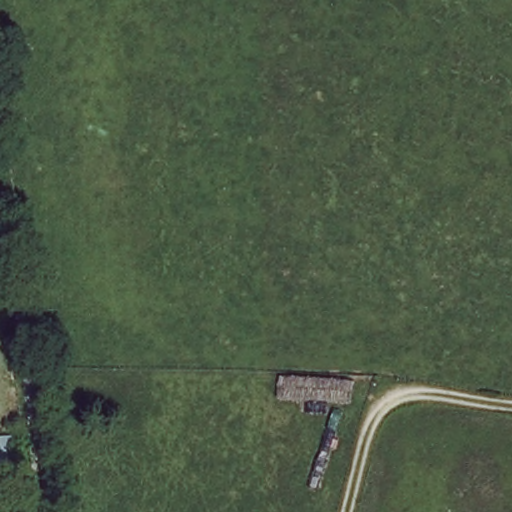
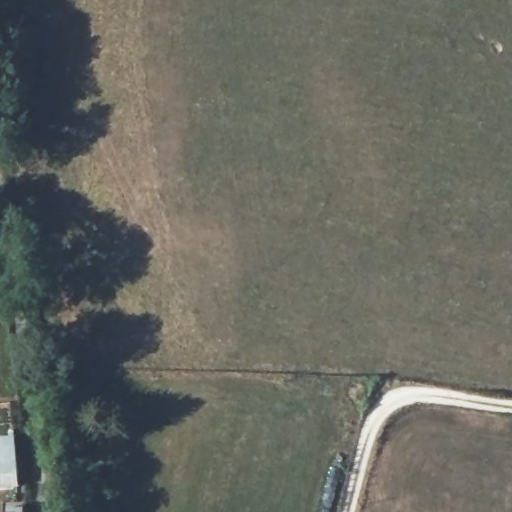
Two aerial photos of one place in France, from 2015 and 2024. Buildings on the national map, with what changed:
new [(8,435),(10,467),(15,467),(17,486),(0,487),(0,436),(8,435)]

